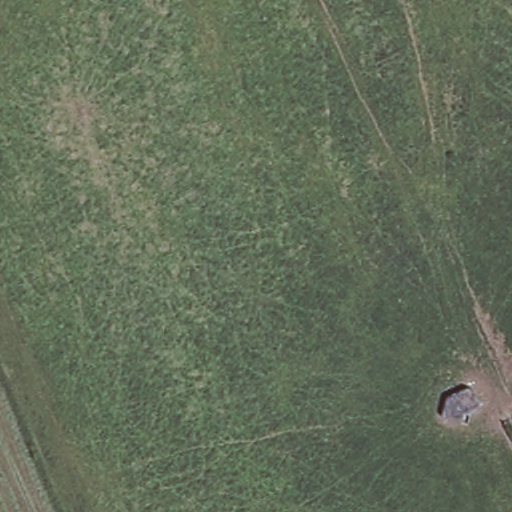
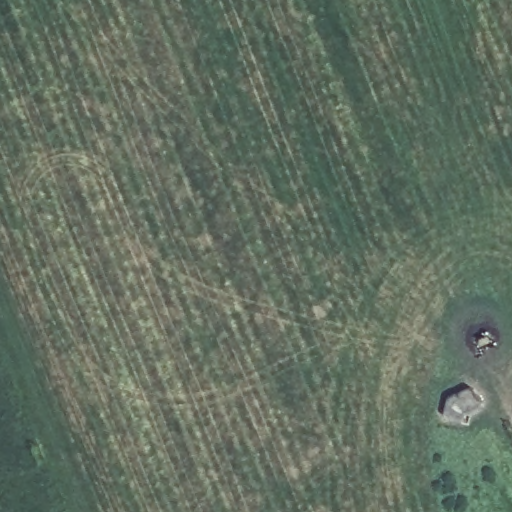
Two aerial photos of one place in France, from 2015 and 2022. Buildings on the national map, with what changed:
unchanged [(475,386),(482,403),(456,417),(446,401),(475,386)]

